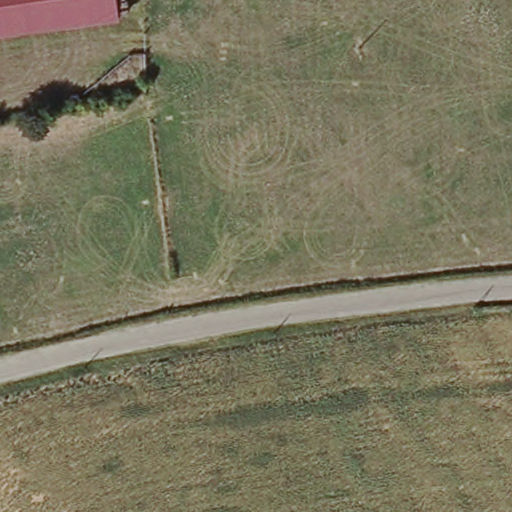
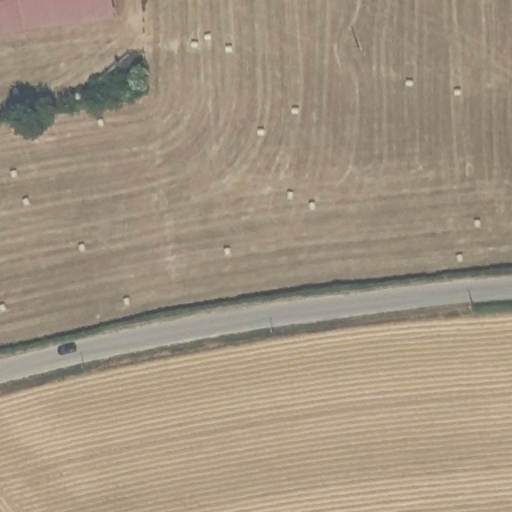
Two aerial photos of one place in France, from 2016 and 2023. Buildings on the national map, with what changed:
unchanged [(29,33),(0,37),(0,0),(112,0),(115,20),(29,33)]

